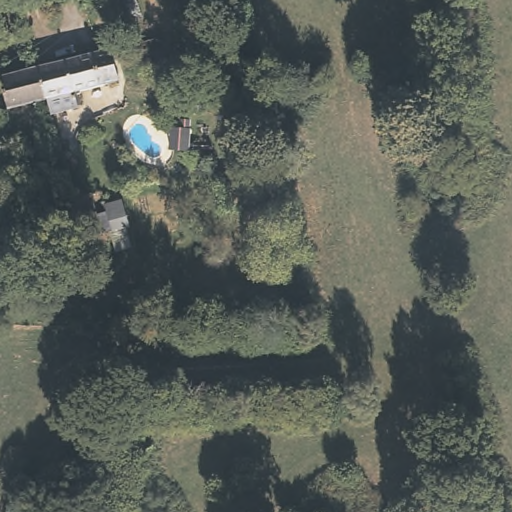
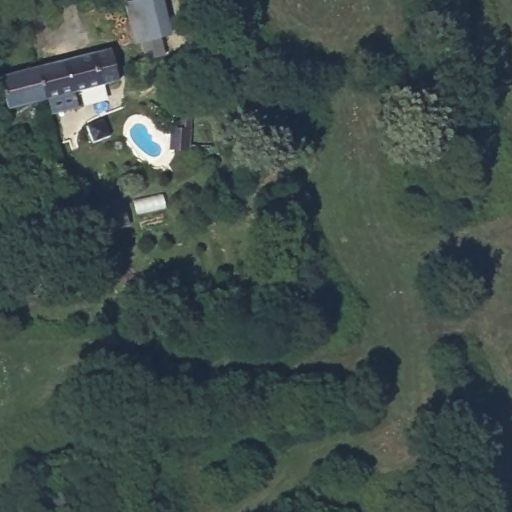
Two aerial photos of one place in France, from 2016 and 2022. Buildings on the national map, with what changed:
new [(148,58),(144,39),(136,41),(126,1),(131,0),(164,0),(173,34),(163,36),(167,54),(148,58)]
unchanged [(64,59),(93,52),(108,48),(117,81),(101,85),(73,93),(64,59)]
unchanged [(48,113),(44,99),(39,80),(36,67),(64,59),(73,93),(76,106),(48,113)]
unchanged [(7,108),(0,76),(36,67),(39,80),(44,99),(7,108)]
unchanged [(211,91),(209,112),(174,109),(176,88),(211,91)]

